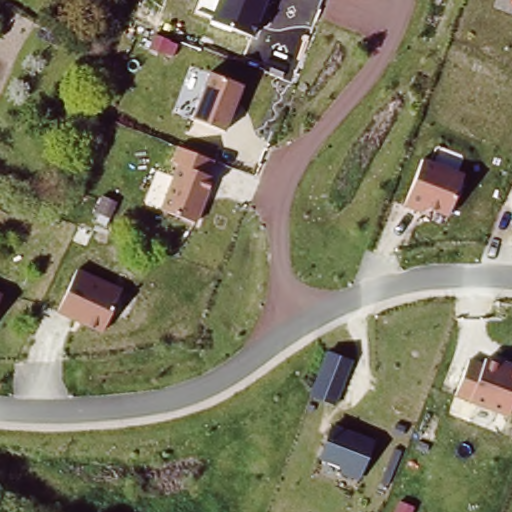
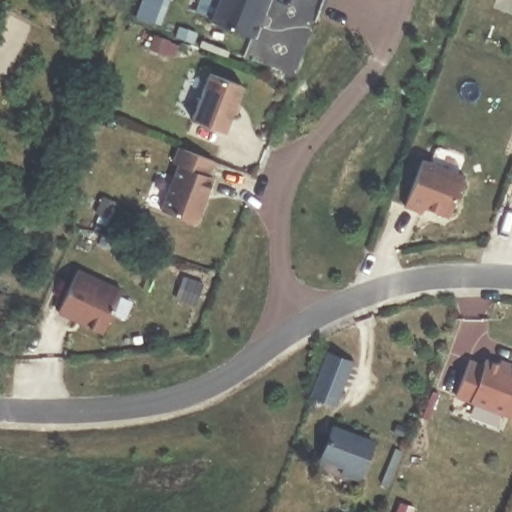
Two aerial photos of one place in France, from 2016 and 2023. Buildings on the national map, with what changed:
unchanged [(268,0),(260,23),(257,21),(251,36),(212,19),(219,0),(268,0)]
unchanged [(243,85),(225,131),(190,117),(207,72),(243,85)]
unchanged [(172,160),(177,147),(214,161),(209,175),(213,177),(195,223),(160,209),(177,164),(172,160)]
unchanged [(462,177),(446,217),(422,207),(420,211),(403,205),(422,160),(462,177)]
unchanged [(57,314),(78,270),(122,290),(102,334),(57,314)]
unchanged [(1,295),(0,297),(0,294),(1,295)]
unchanged [(353,360),(335,405),(310,396),(327,350),(353,360)]
unchanged [(469,359),(482,363),(484,359),(512,369),(512,408),(509,417),(455,398),(469,359)]
unchanged [(374,441),(357,480),(340,475),(343,467),(318,457),(330,425),(374,441)]

